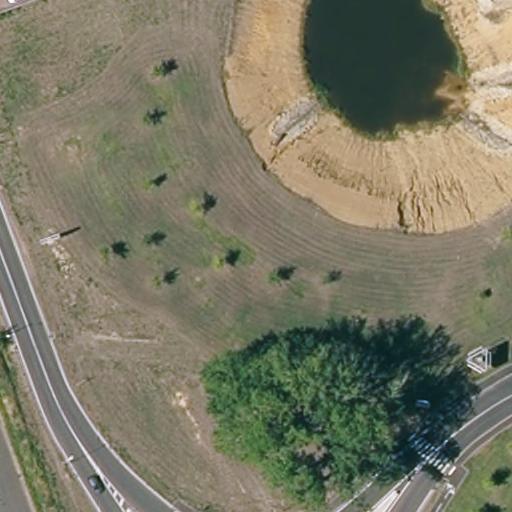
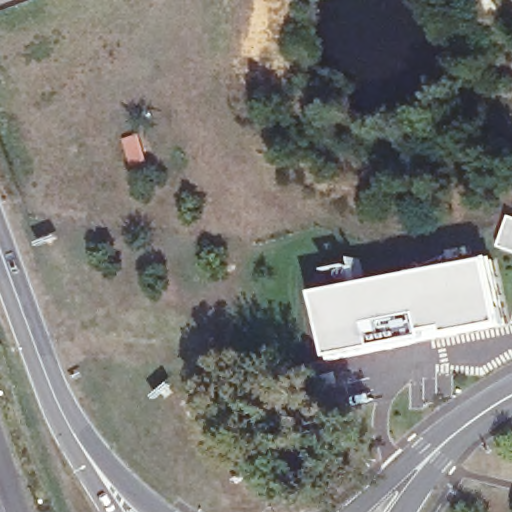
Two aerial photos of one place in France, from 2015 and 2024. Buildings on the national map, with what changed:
new [(338,355),(325,293),(495,261),(508,324),(338,355)]

